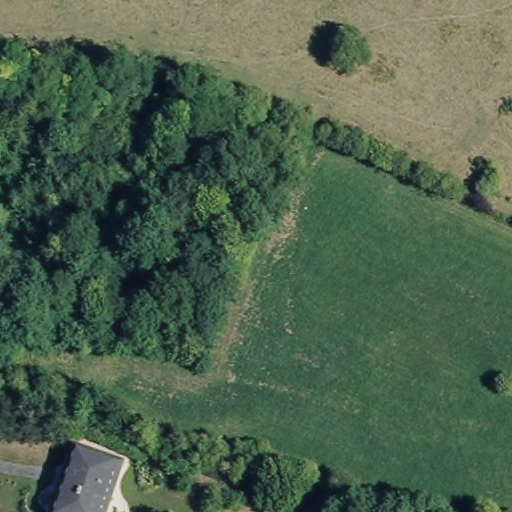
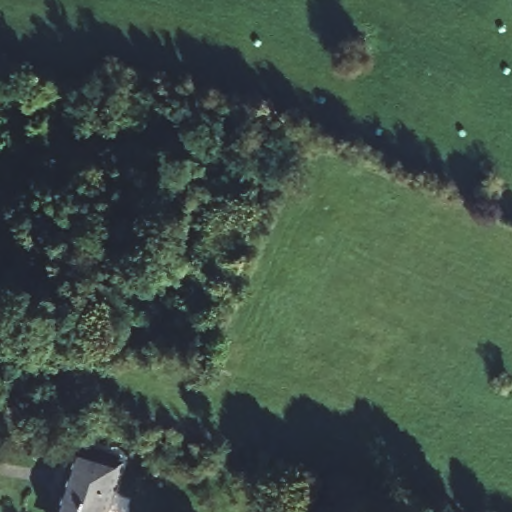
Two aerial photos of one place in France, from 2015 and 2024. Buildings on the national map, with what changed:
unchanged [(106,512),(60,512),(66,495),(81,452),(123,466),(106,512)]

